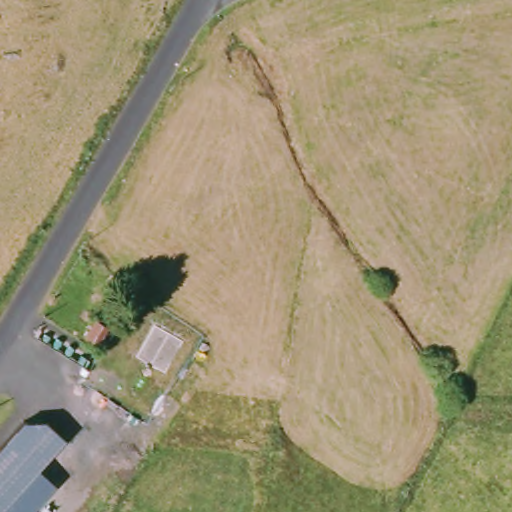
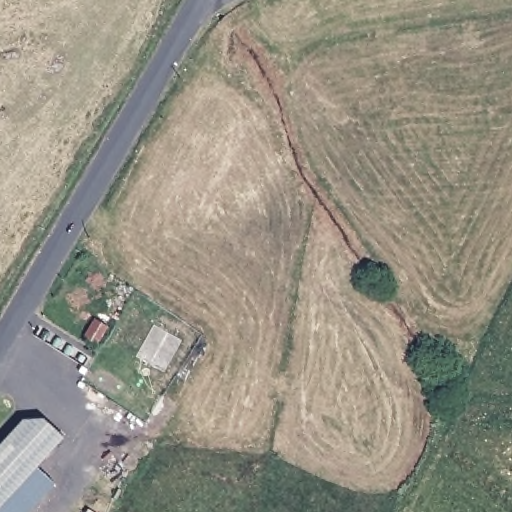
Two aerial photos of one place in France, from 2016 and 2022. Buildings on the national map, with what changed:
unchanged [(67,437),(0,511),(0,447),(26,418),(49,418),(67,437)]
unchanged [(0,512),(0,511),(38,468),(55,484),(30,512),(0,512)]

